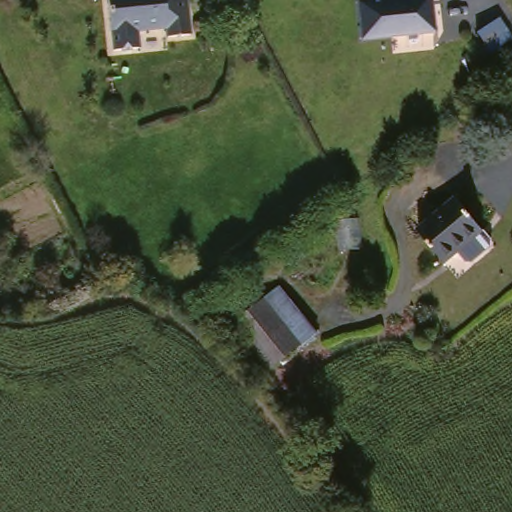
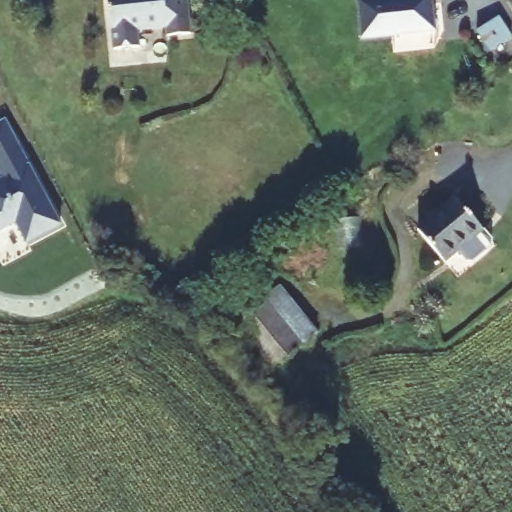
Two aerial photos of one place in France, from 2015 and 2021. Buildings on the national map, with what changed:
unchanged [(194,34),(171,36),(170,25),(140,27),(140,43),(125,44),(115,45),(114,24),(112,0),(192,0),(194,34)]
unchanged [(386,10),(436,6),(438,45),(406,47),(365,50),(363,11),(386,10)]
unchanged [(496,50),(481,29),(502,15),(512,30),(512,38),(496,50)]
new [(0,182),(2,181),(0,176),(0,159),(21,147),(62,226),(26,246),(16,226),(0,234),(0,182)]
unchanged [(455,197),(480,228),(438,260),(414,228),(455,197)]
unchanged [(267,372),(232,328),(282,287),(317,331),(267,372)]

